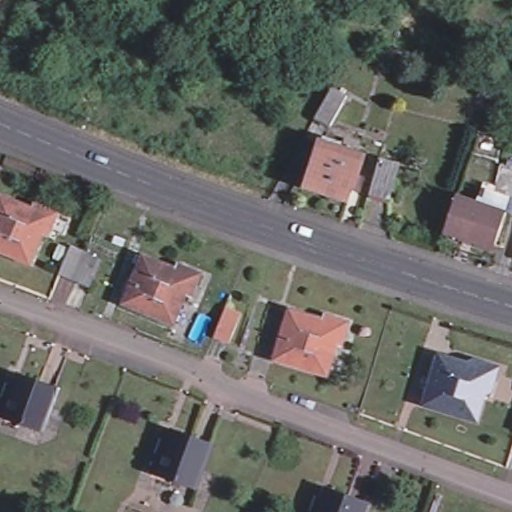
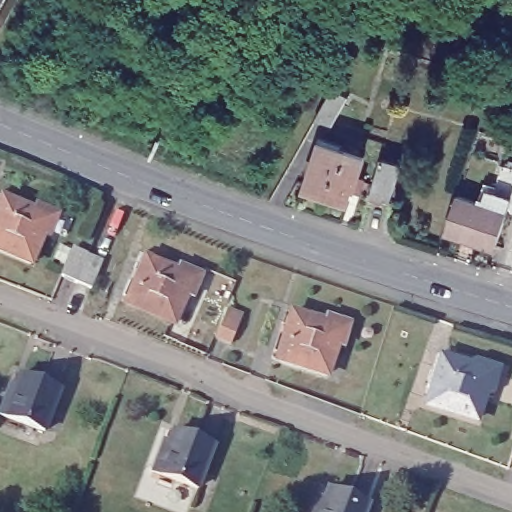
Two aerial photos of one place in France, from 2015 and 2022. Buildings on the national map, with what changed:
unchanged [(352,97),(350,100),(334,127),(320,118),(333,95),(336,89),(352,97)]
unchanged [(365,157),(363,163),(356,185),(353,184),(348,199),(309,186),(320,151),(322,143),(365,157)]
unchanged [(394,183),(386,209),(368,204),(376,178),(378,169),(396,174),(394,183)]
unchanged [(487,197),(488,194),(512,202),(511,204),(507,217),(496,248),(477,241),(475,245),(443,235),(455,200),(483,209),(487,197)]
unchanged [(59,216),(50,238),(44,236),(32,264),(0,251),(0,197),(4,199),(35,212),(37,207),(59,216)]
unchanged [(122,305),(141,259),(174,273),(176,268),(198,277),(188,300),(183,297),(171,327),(122,305)]
unchanged [(83,266),(100,273),(87,301),(71,295),(56,289),(68,260),(83,266)]
unchanged [(325,319),(347,326),(340,349),(335,347),(327,377),(277,361),(291,314),(323,324),(325,319)]
unchanged [(225,356),(211,349),(222,321),(236,326),(225,356)]
unchanged [(477,363),(500,370),(492,393),(487,392),(477,422),(427,407),(429,400),(423,398),(435,357),(442,359),(475,369),(477,363)]
unchanged [(0,402),(5,386),(12,389),(18,374),(55,389),(40,431),(0,416),(0,402)]
unchanged [(155,472),(165,444),(170,446),(176,431),(215,447),(199,489),(155,472)]
unchanged [(360,512),(321,512),(325,499),(360,512)]
unchanged [(318,512),(313,512),(314,511),(318,512)]

